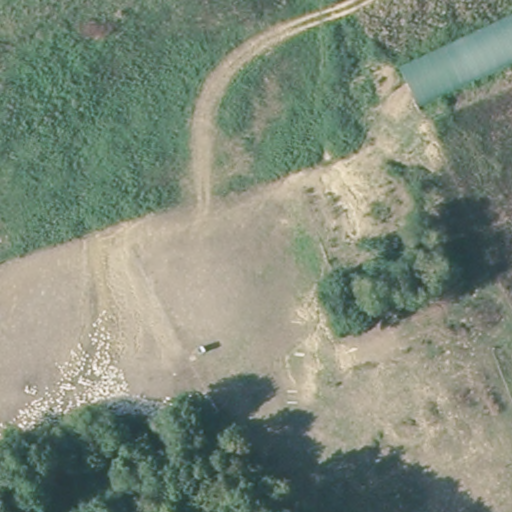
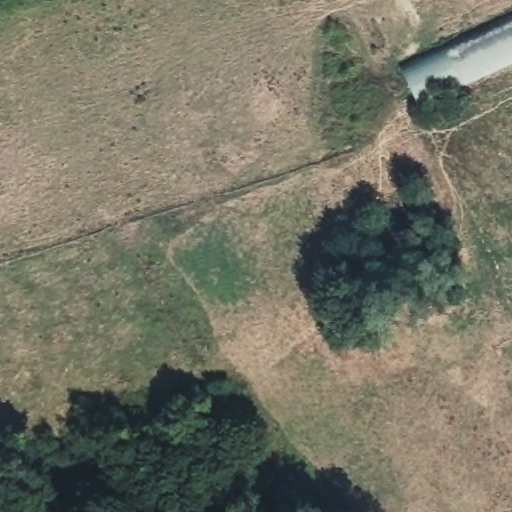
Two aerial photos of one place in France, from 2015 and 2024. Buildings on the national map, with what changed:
unchanged [(401,67),(512,18),(512,63),(418,107),(401,67)]

